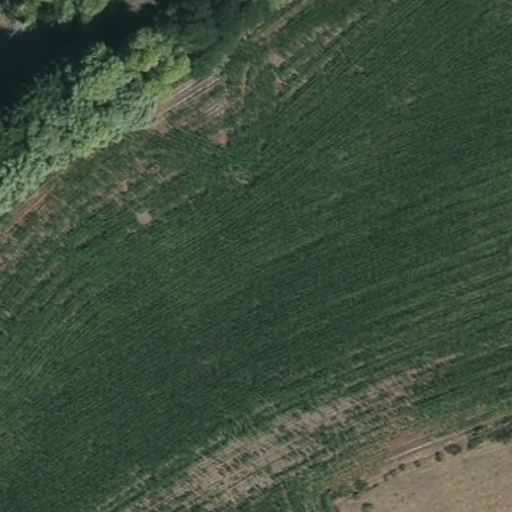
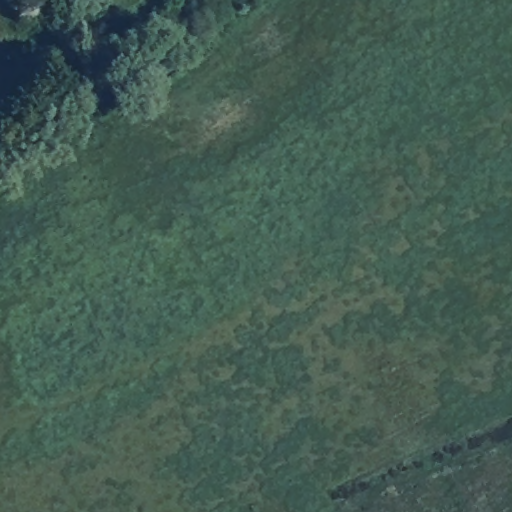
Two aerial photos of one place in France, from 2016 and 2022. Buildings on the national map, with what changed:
[]

